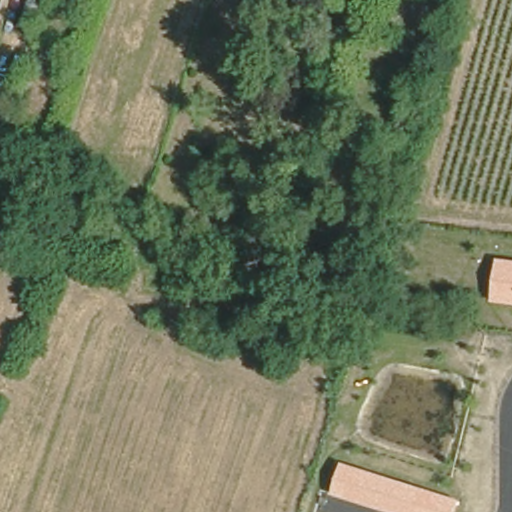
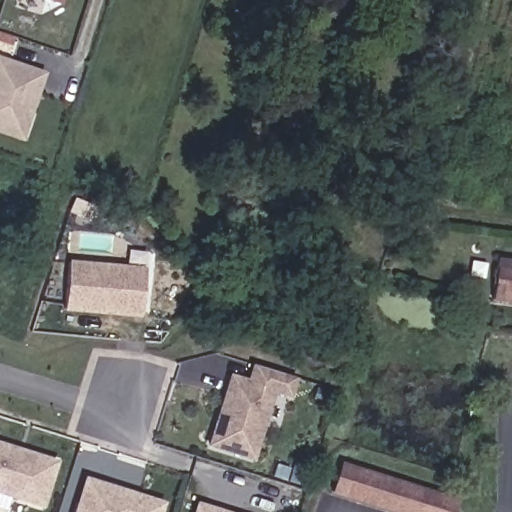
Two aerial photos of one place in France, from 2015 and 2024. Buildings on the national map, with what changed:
new [(59,2),(52,0),(60,0),(59,2)]
new [(0,129),(0,57),(44,72),(30,124),(26,138),(0,129)]
new [(147,265),(143,311),(67,304),(71,258),(147,265)]
unchanged [(492,301),(498,259),(512,261),(512,304),(492,301)]
new [(273,403),(257,452),(215,439),(232,384),(236,370),(241,372),(254,375),(259,359),(301,371),(289,409),(273,403)]
new [(41,512),(0,499),(0,450),(58,468),(45,512),(41,512)]
unchanged [(393,512),(332,493),(342,463),(460,500),(456,512),(393,512)]
new [(80,512),(88,484),(109,489),(107,500),(143,508),(146,497),(166,501),(163,512),(80,512)]
new [(241,512),(200,512),(203,500),(241,512)]

